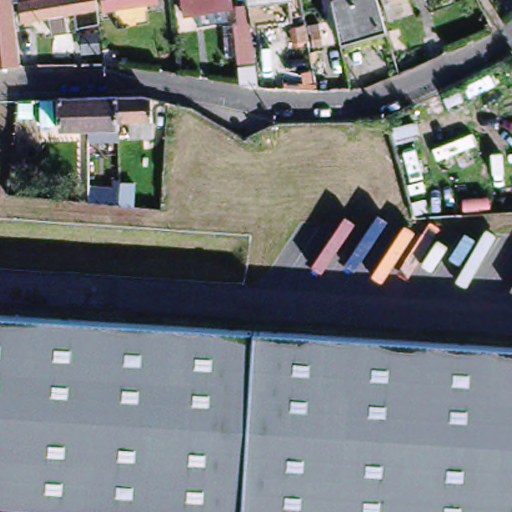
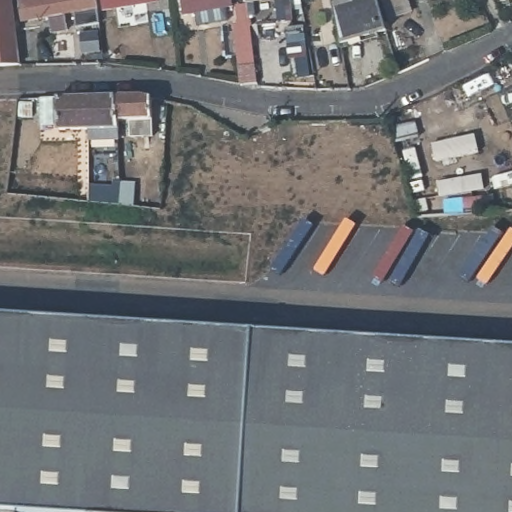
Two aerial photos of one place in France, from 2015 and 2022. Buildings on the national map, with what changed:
unchanged [(68,15),(70,26),(65,27),(65,31),(50,33),(47,18),(21,22),(18,3),(36,0),(94,0),(95,10),(68,15)]
unchanged [(104,9),(102,0),(154,0),(155,1),(104,9)]
unchanged [(205,7),(206,13),(195,15),(194,9),(182,11),(180,0),(230,0),(231,2),(205,7)]
unchanged [(290,0),(292,16),(249,22),(255,69),(240,71),(233,19),(237,19),(235,1),(246,0),(290,0)]
unchanged [(378,0),(388,31),(344,45),(335,1),(338,0),(378,0)]
unchanged [(0,66),(0,4),(14,65),(0,66)]
unchanged [(56,100),(85,99),(114,97),(140,96),(150,99),(151,121),(151,134),(127,134),(126,122),(115,123),(115,130),(86,131),(58,131),(56,100)]
unchanged [(51,126),(40,126),(39,100),(51,100),(51,126)]
unchanged [(0,510),(0,310),(512,345),(512,512),(26,512),(0,510)]

